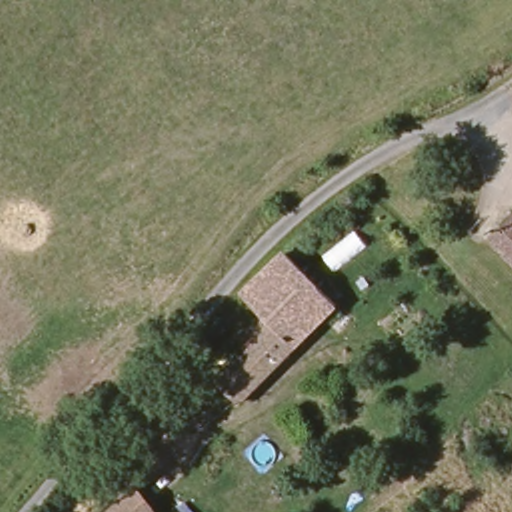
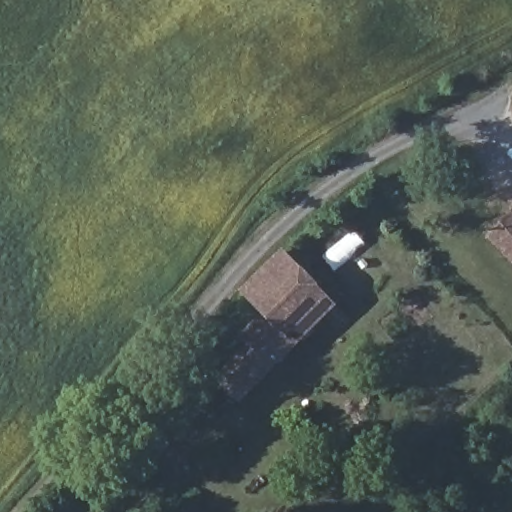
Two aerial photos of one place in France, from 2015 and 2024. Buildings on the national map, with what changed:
unchanged [(495,235),(512,219),(512,256),(495,235)]
unchanged [(245,400),(224,380),(276,327),(242,291),(288,253),(340,307),(245,400)]
unchanged [(155,507),(149,512),(109,512),(137,488),(155,507)]

